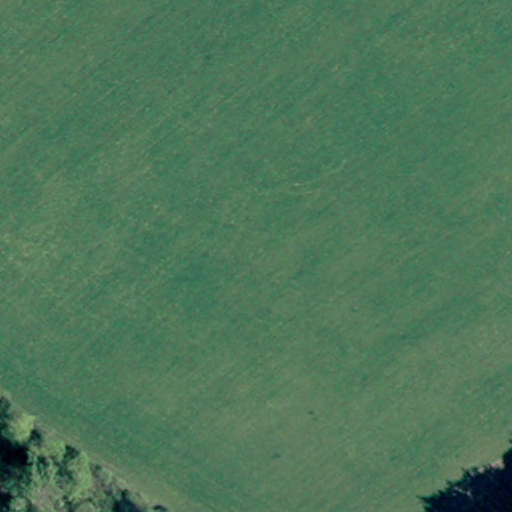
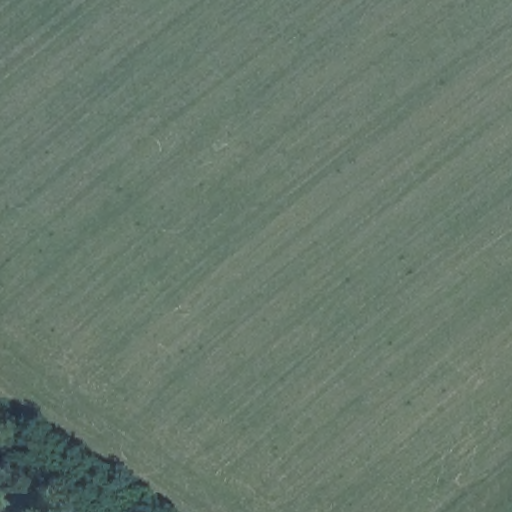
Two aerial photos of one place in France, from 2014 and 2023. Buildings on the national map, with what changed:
[]

